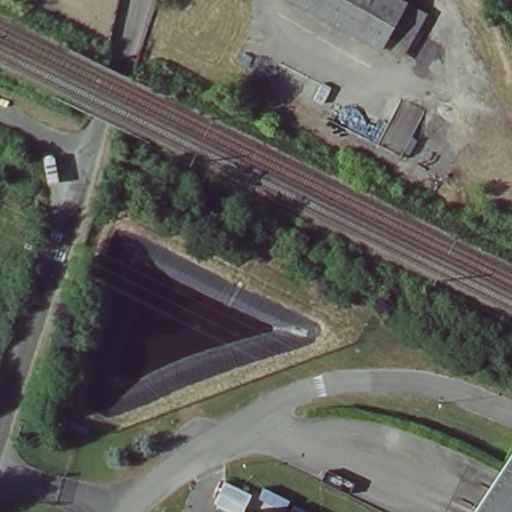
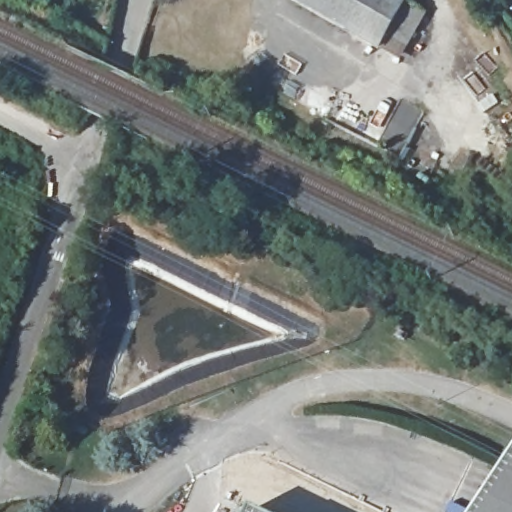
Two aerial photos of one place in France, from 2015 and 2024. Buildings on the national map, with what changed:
unchanged [(378,50),(290,0),(291,0),(399,0),(405,3),(378,50)]
unchanged [(512,512),(475,512),(512,450),(512,512)]
unchanged [(255,512),(247,512),(248,509),(255,512)]

